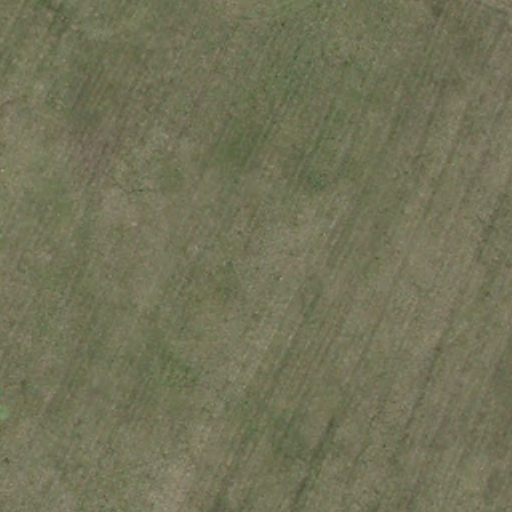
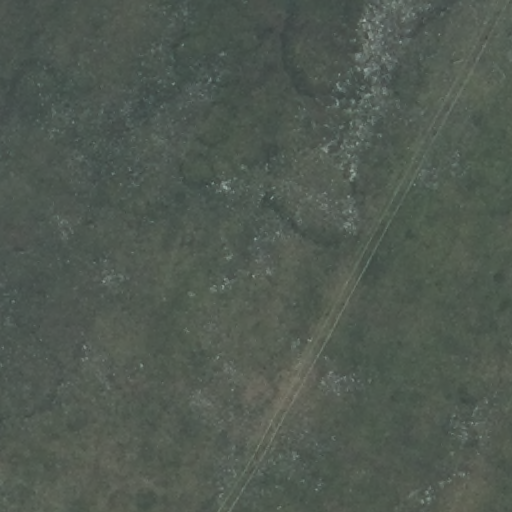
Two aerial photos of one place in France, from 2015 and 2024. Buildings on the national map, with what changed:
[]

